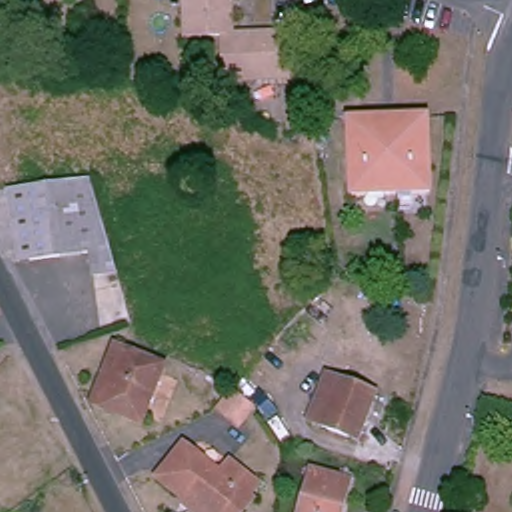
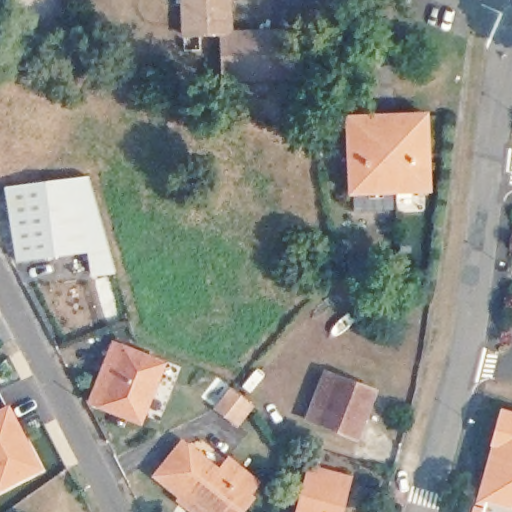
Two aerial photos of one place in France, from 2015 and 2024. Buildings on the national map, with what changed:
unchanged [(231,29),(292,29),(292,75),(223,75),(221,31),(183,30),(183,0),(231,0),(231,29)]
unchanged [(354,195),(352,118),(430,117),(429,193),(400,194),(354,195)]
unchanged [(111,275),(93,277),(89,251),(19,258),(15,235),(8,183),(75,175),(92,173),(97,192),(111,275)]
unchanged [(107,362),(116,338),(128,342),(126,349),(164,363),(142,424),(105,408),(94,403),(107,362)]
unchanged [(314,423),(328,374),(340,378),(374,389),(360,437),(327,428),(314,423)]
unchanged [(236,430),(210,413),(232,387),(255,406),(236,430)]
new [(0,491),(0,412),(9,407),(42,471),(0,491)]
new [(512,413),(512,512),(473,512),(501,410),(512,413)]
unchanged [(220,478),(231,463),(257,484),(245,499),(239,493),(225,512),(213,512),(192,495),(188,500),(163,479),(188,448),(220,478)]
unchanged [(353,476),(344,512),(302,512),(315,465),(353,476)]
unchanged [(244,512),(225,512),(239,493),(245,499),(257,484),(263,488),(244,512)]
unchanged [(188,500),(192,495),(213,512),(195,512),(185,503),(188,500)]

